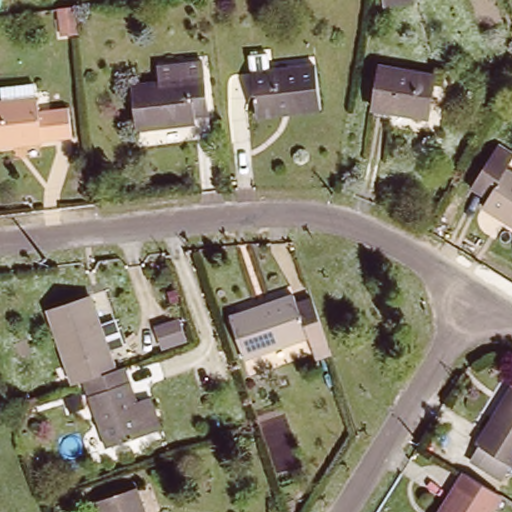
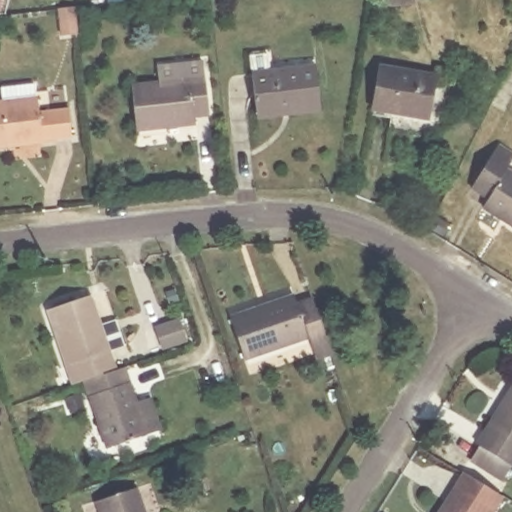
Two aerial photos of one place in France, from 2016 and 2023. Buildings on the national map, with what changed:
unchanged [(391,0),(403,0),(392,1),(391,0)]
unchanged [(75,7),(79,33),(62,35),(60,9),(75,7)]
unchanged [(440,76),(433,114),(379,105),(385,67),(440,76)]
unchanged [(317,69),(320,106),(291,109),(290,104),(254,107),(248,74),(317,69)]
unchanged [(135,94),(162,91),(160,75),(206,70),(207,86),(210,115),(200,116),(202,126),(139,133),(135,94)]
unchanged [(0,111),(7,110),(5,90),(43,86),(45,112),(69,109),(74,140),(0,148),(0,111)]
unchanged [(485,209),(488,205),(470,194),(492,159),(499,149),(512,157),(512,167),(510,170),(507,176),(512,180),(512,227),(485,209)]
unchanged [(49,312),(90,297),(115,368),(84,379),(74,383),(49,312)]
unchanged [(295,298),(297,304),(312,299),(328,346),(311,352),(307,339),(248,359),(234,319),(295,298)]
unchanged [(180,317),(187,332),(167,342),(160,325),(180,317)]
unchanged [(109,447),(84,379),(115,368),(125,364),(137,401),(154,394),(166,428),(109,447)]
unchanged [(481,448),(477,445),(512,392),(512,466),(512,467),(509,465),(499,479),(472,463),(481,448)]
unchanged [(494,512),(443,512),(467,474),(504,496),(494,512)]
unchanged [(143,512),(98,512),(97,508),(137,494),(143,512)]

